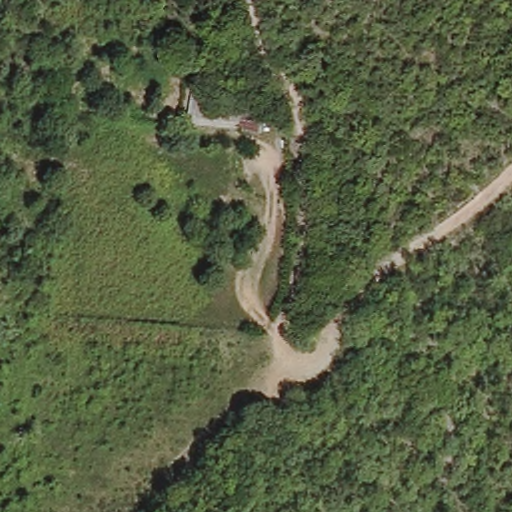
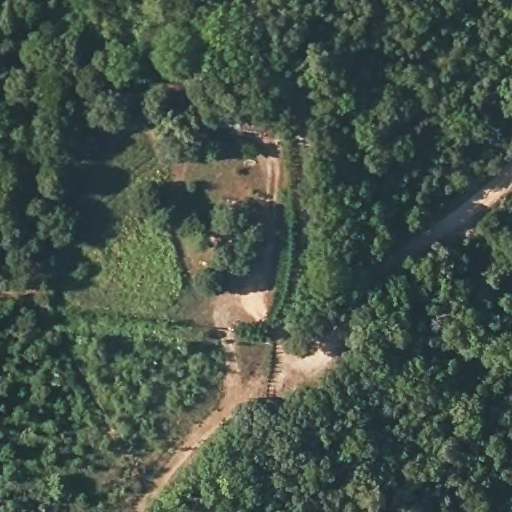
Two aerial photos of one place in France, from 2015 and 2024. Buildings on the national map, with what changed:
unchanged [(240,107),(265,112),(262,138),(237,134),(240,107)]

